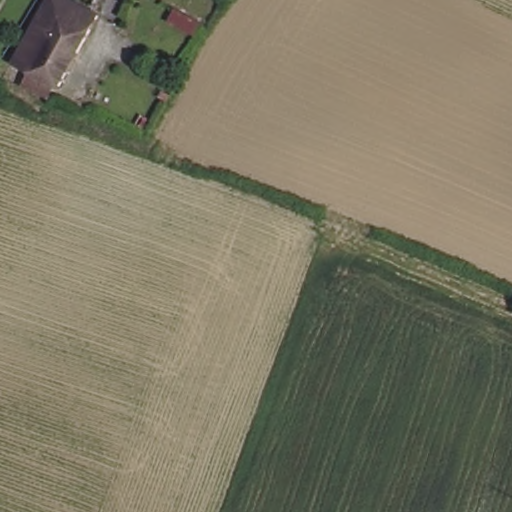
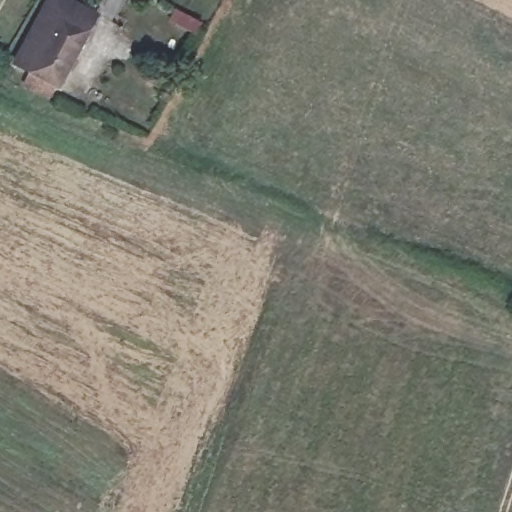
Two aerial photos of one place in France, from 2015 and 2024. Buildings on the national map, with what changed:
unchanged [(17,68),(46,13),(54,0),(62,0),(101,19),(92,36),(62,90),(17,68)]

